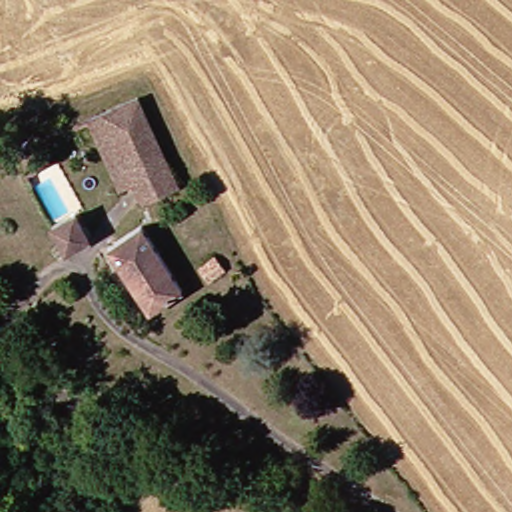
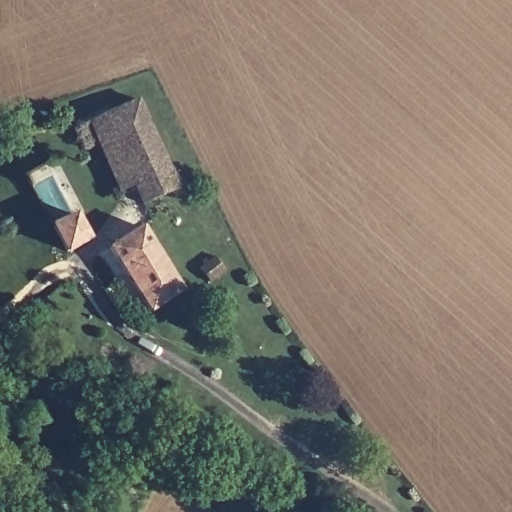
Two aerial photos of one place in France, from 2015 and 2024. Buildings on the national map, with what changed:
unchanged [(150,216),(141,197),(130,182),(119,190),(91,145),(81,128),(128,101),(171,179),(182,199),(150,216)]
unchanged [(69,258),(50,229),(72,214),(90,245),(69,258)]
unchanged [(182,288),(150,312),(105,250),(135,228),(182,288)]

